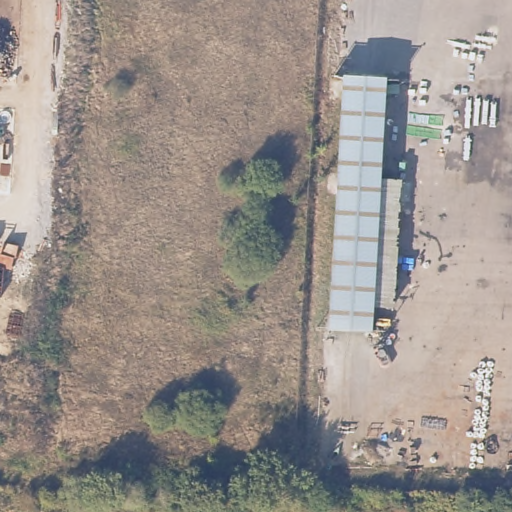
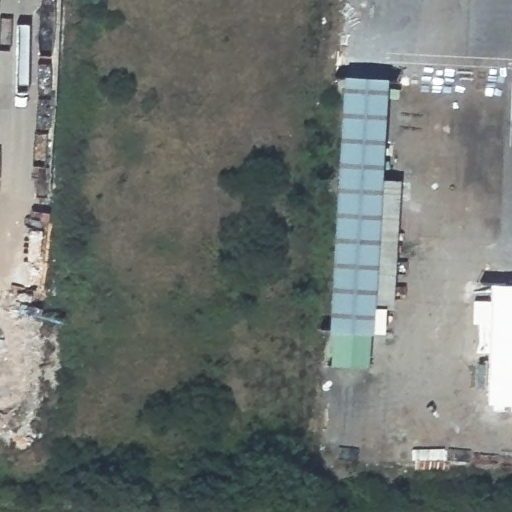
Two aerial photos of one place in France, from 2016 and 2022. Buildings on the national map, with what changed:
unchanged [(387,76),(382,175),(376,300),(375,327),(332,324),(339,191),(326,190),(327,169),(340,170),(344,74),(387,76)]
unchanged [(402,177),(397,301),(376,300),(382,175),(402,177)]
new [(512,281),(512,403),(487,402),(490,325),(473,324),(474,299),(492,299),(492,281),(512,281)]

